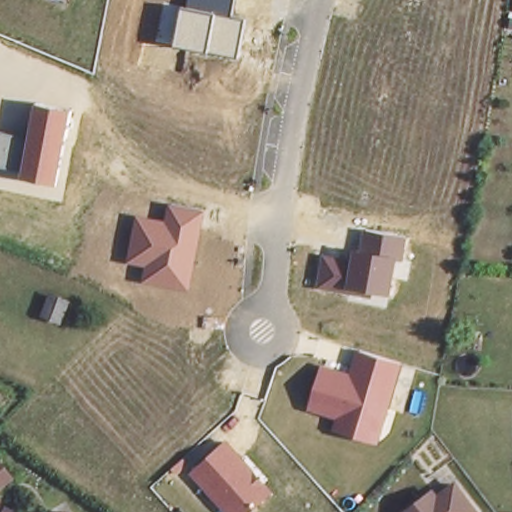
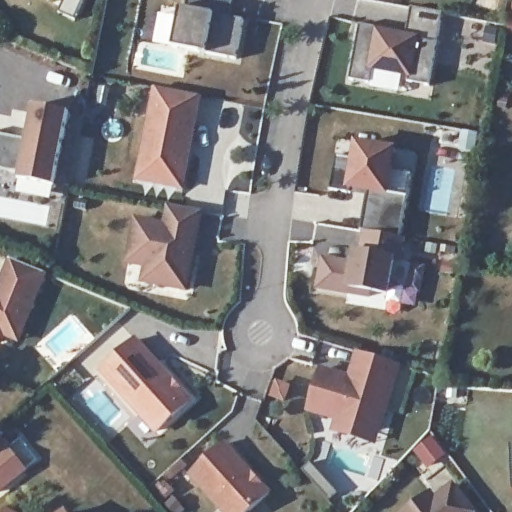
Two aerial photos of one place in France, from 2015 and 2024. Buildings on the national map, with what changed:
new [(69,1),(67,0),(70,0),(69,1)]
unchanged [(236,57),(174,46),(181,7),(188,9),(190,0),(235,0),(231,18),(244,20),(236,57)]
new [(442,14),(437,42),(429,85),(408,83),(408,78),(372,72),(370,82),(350,79),(360,25),(376,29),(406,34),(411,8),(442,14)]
new [(152,89),(202,97),(184,191),(135,181),(152,89)]
unchanged [(55,186),(19,179),(20,172),(0,168),(0,133),(27,137),(33,106),(70,112),(55,186)]
new [(454,147),(456,131),(477,135),(475,151),(454,147)]
new [(368,193),(346,191),(329,190),(335,156),(352,157),(355,142),(398,147),(394,172),(411,175),(402,238),(363,232),(368,193)]
unchanged [(188,290),(141,282),(144,267),(127,264),(135,217),(165,222),(168,207),(203,213),(188,290)]
unchanged [(403,262),(395,261),(390,296),(372,293),(371,296),(318,287),(323,256),(350,261),(351,250),(360,251),(363,232),(402,238),(406,239),(403,262)]
new [(1,345),(0,345),(0,279),(8,258),(47,274),(20,344),(3,337),(1,345)]
demolished [(61,287),(85,295),(80,313),(55,305),(61,287)]
new [(98,371),(137,336),(194,400),(155,435),(98,371)]
unchanged [(377,445),(331,431),(335,420),(307,411),(320,367),(348,375),(355,353),(400,366),(377,445)]
unchanged [(222,512),(190,475),(227,441),(271,492),(251,512),(222,512)]
new [(300,471),(308,463),(335,492),(327,500),(300,471)]
unchanged [(0,479),(0,476),(1,478),(0,479)]
unchanged [(440,503),(457,490),(475,512),(416,512),(435,497),(440,503)]
unchanged [(69,512),(55,512),(65,507),(69,512)]
unchanged [(14,512),(3,512),(5,508),(14,512)]

